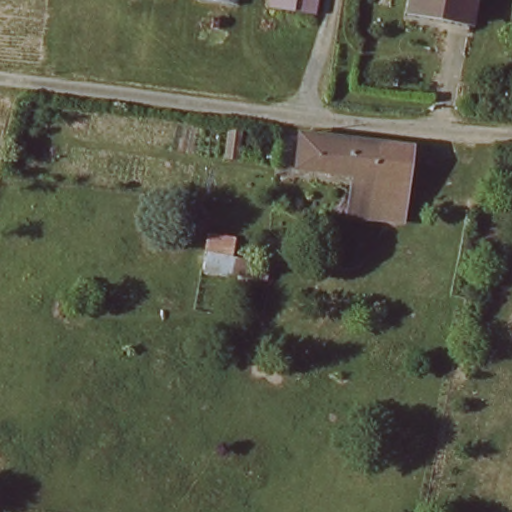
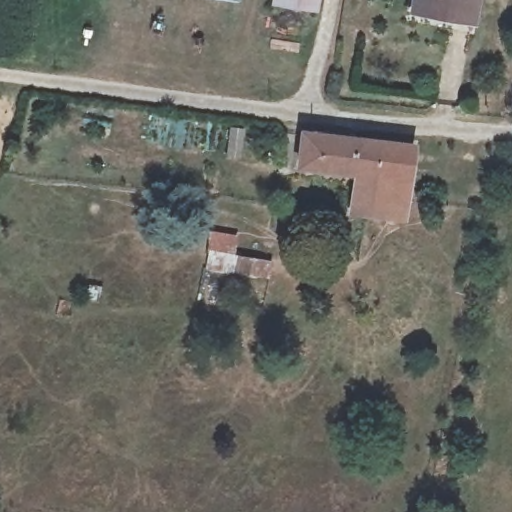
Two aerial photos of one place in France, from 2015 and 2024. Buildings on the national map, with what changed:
unchanged [(273,0),(321,0),(319,12),(273,4),(273,0)]
unchanged [(410,1),(411,0),(478,0),(469,23),(410,1)]
unchanged [(404,213),(352,211),(354,180),(314,179),(301,171),(307,132),(320,140),(321,134),(409,136),(404,213)]
unchanged [(207,270),(209,249),(273,258),(271,279),(207,270)]

